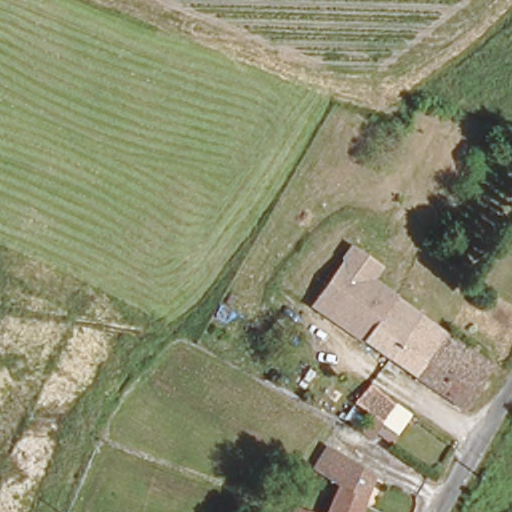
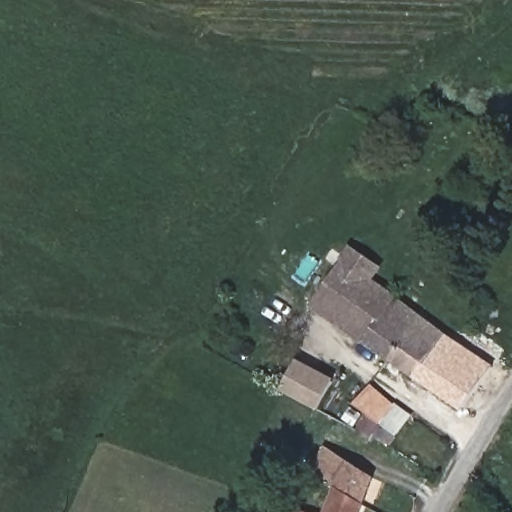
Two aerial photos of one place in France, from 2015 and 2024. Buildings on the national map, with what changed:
unchanged [(366,351),(314,315),(355,256),(378,271),(371,281),(373,290),(397,307),(411,317),(409,320),(417,325),(444,344),(416,386),(390,368),(366,351)]
unchanged [(444,344),(489,377),(462,418),(416,386),(444,344)]
new [(316,411),(278,391),(295,359),(333,378),(316,411)]
unchanged [(359,422),(362,415),(353,407),(346,399),(358,382),(367,390),(389,408),(380,426),(393,435),(387,444),(373,435),(369,443),(353,431),(344,425),(350,415),(359,422)]
unchanged [(331,486),(310,473),(324,448),(372,477),(361,505),(331,486)]
unchanged [(331,486),(361,505),(358,512),(321,512),(327,495),(331,486)]

